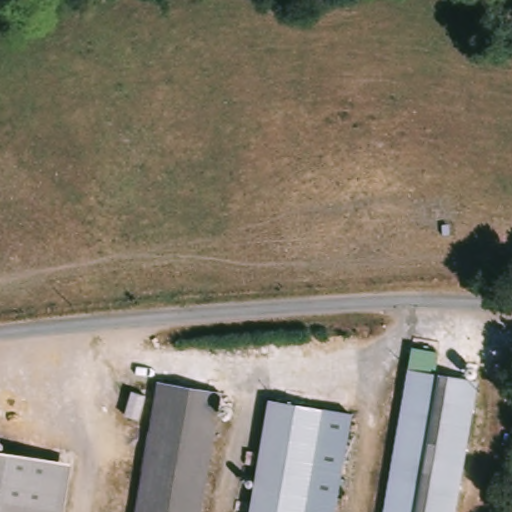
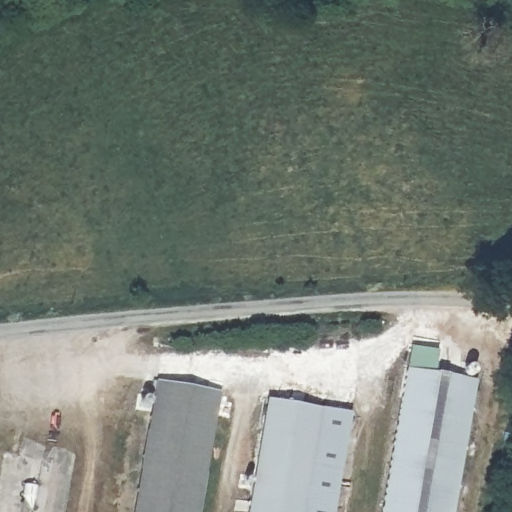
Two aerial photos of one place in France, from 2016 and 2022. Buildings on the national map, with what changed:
unchanged [(411,347),(436,352),(432,371),(477,378),(454,512),(381,512),(411,347)]
unchanged [(217,392),(197,512),(134,512),(157,381),(217,392)]
unchanged [(349,416),(332,512),(248,512),(267,401),(349,416)]
demolished [(61,512),(0,512),(0,452),(68,464),(61,512)]

